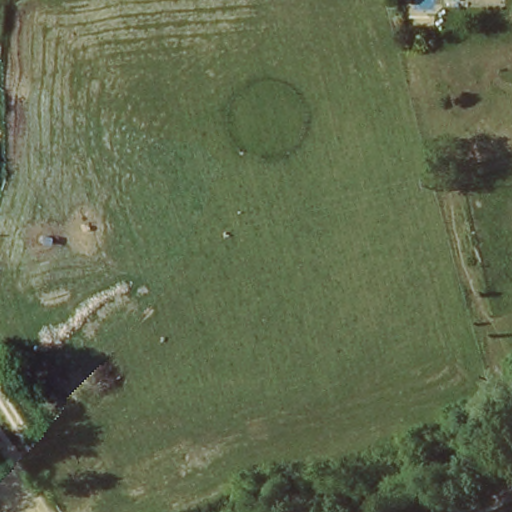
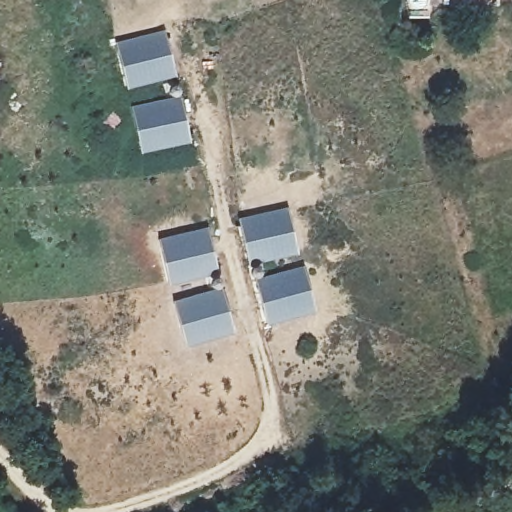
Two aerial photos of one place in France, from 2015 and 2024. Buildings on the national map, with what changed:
new [(128,88),(117,42),(164,30),(177,75),(128,88)]
new [(142,151),(132,107),(180,96),(191,141),(142,151)]
new [(249,264),(239,218),(286,206),(298,252),(249,264)]
new [(170,284),(159,239),(208,227),(217,273),(170,284)]
new [(268,324),(256,279),(304,266),(316,312),(268,324)]
new [(187,346),(174,302),(222,288),(234,333),(187,346)]

